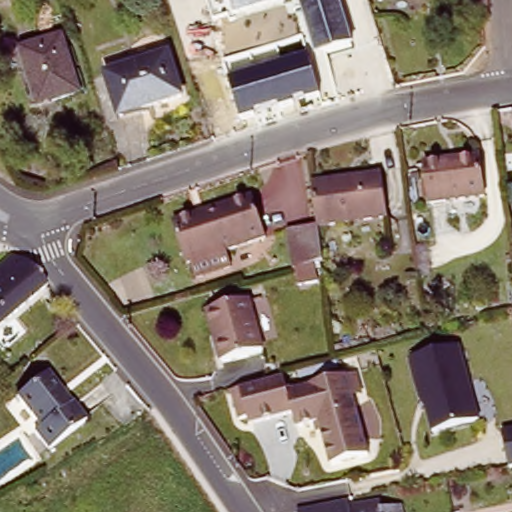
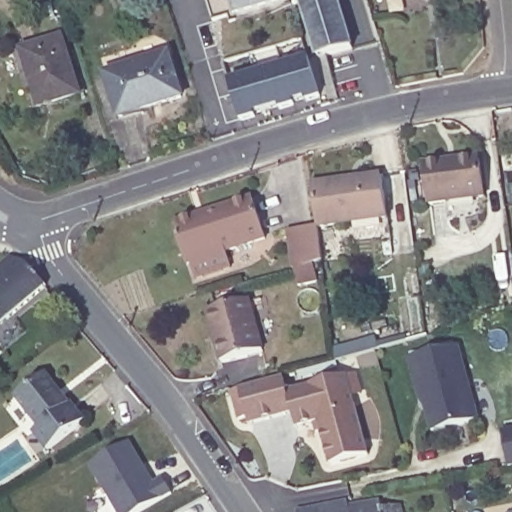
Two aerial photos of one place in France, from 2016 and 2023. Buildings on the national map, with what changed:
unchanged [(215,22),(207,0),(278,0),(232,14),(215,22)]
unchanged [(333,0),(348,47),(316,56),(298,0),(333,0)]
unchanged [(35,107),(17,49),(58,36),(77,94),(35,107)]
unchanged [(120,116),(107,75),(170,55),(182,96),(120,116)]
unchanged [(309,56),(321,98),(307,103),(305,99),(295,102),(295,105),(281,110),(279,106),(255,113),(255,116),(242,121),(230,81),(309,56)]
unchanged [(427,204),(422,165),(476,158),(482,197),(427,204)]
unchanged [(315,229),(309,186),(377,178),(382,221),(315,229)]
unchanged [(225,248),(231,266),(192,279),(185,259),(184,259),(170,221),(249,195),(263,235),(225,248)]
unchanged [(290,273),(285,233),(315,229),(319,265),(290,273)]
unchanged [(33,296),(30,298),(0,322),(0,269),(15,273),(33,296)]
unchanged [(220,361),(214,339),(216,338),(207,309),(247,298),(262,349),(220,361)]
unchanged [(462,341),(480,407),(482,416),(435,429),(427,404),(430,403),(427,392),(422,394),(410,355),(414,354),(462,341)]
unchanged [(322,419),(300,425),(295,410),(252,423),(250,415),(242,418),(235,389),(286,374),(291,390),(350,373),(359,370),(365,390),(355,393),(372,450),(334,462),(322,419)]
unchanged [(47,449),(35,433),(42,428),(19,398),(42,380),(64,409),(70,405),(84,423),(47,449)]
unchanged [(496,427),(505,425),(512,424),(512,461),(504,463),(503,460),(496,427)]
new [(143,512),(116,512),(89,465),(129,442),(152,482),(163,477),(173,495),(143,512)]
unchanged [(294,511),(344,501),(345,505),(375,499),(377,508),(397,505),(399,512),(294,512),(294,511)]

